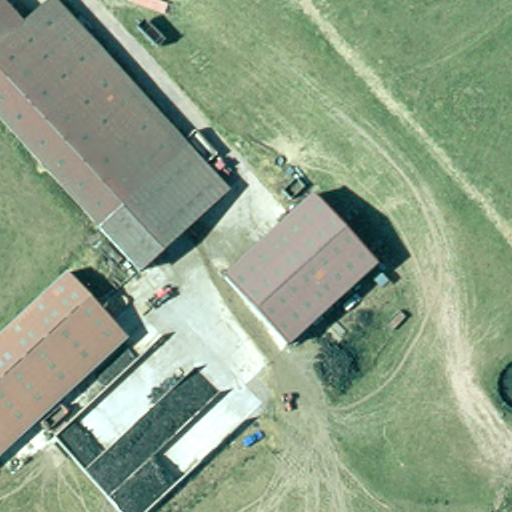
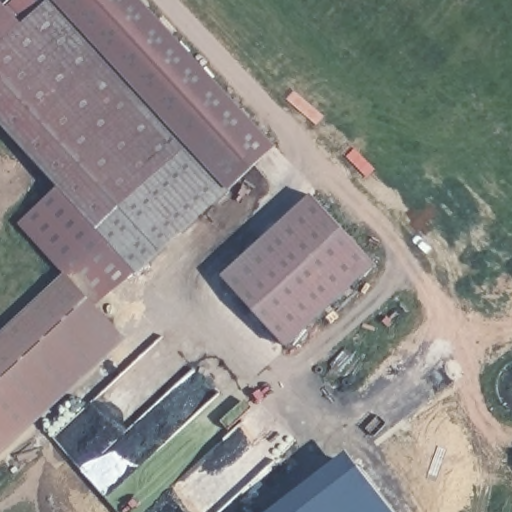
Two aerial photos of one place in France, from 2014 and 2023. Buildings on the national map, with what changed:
unchanged [(29,25),(0,53),(0,0),(6,0),(29,25)]
new [(49,7),(46,3),(49,0),(143,0),(276,147),(224,197),(184,155),(49,7)]
unchanged [(29,25),(49,7),(184,155),(96,236),(0,131),(0,53),(29,25)]
unchanged [(224,197),(133,280),(96,236),(184,155),(224,197)]
new [(19,222),(53,190),(96,236),(131,276),(96,307),(65,274),(19,222)]
unchanged [(299,196),(326,225),(363,265),(274,347),(236,307),(210,278),(299,196)]
unchanged [(126,340),(0,457),(0,334),(65,274),(126,340)]

